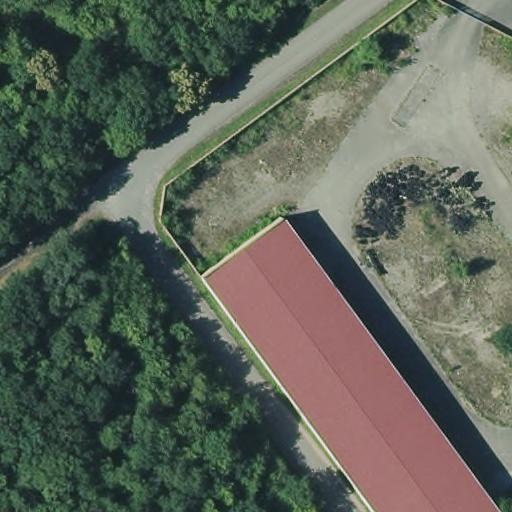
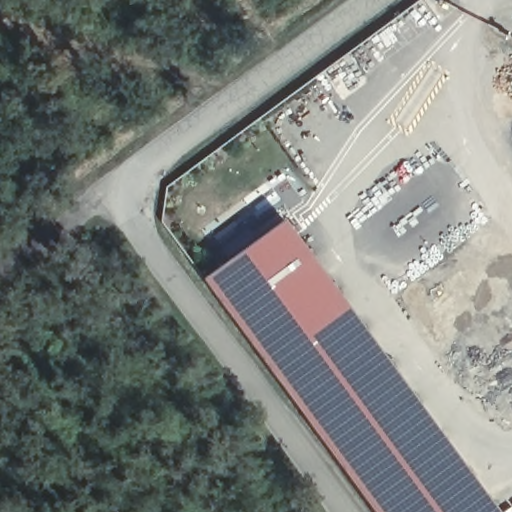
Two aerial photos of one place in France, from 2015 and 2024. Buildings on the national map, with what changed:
unchanged [(501,512),(378,512),(284,383),(205,275),(285,215),(410,386),(501,512)]

